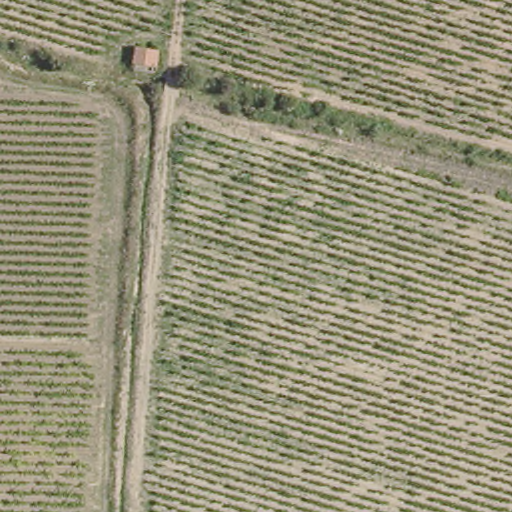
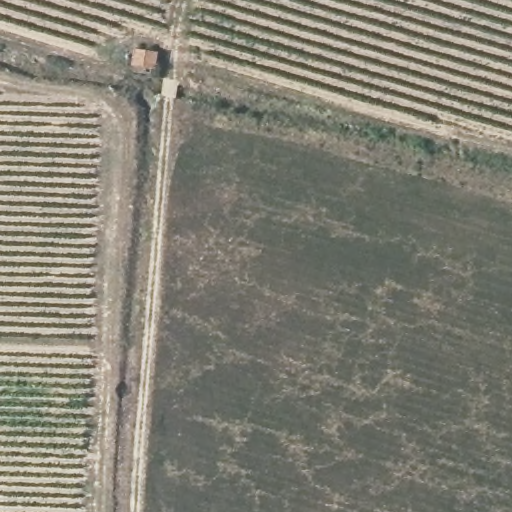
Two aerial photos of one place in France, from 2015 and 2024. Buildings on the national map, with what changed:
unchanged [(156,70),(128,69),(133,49),(160,52),(156,70)]

